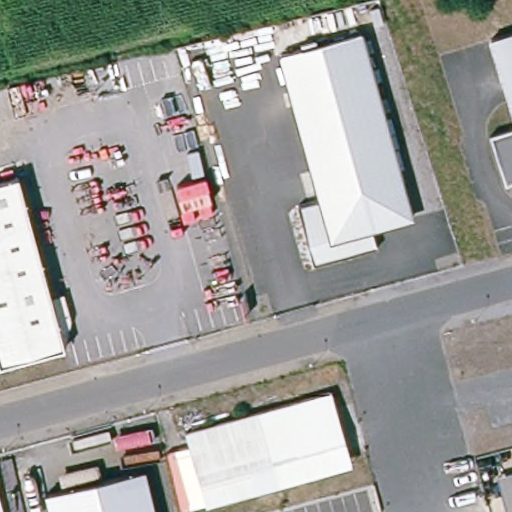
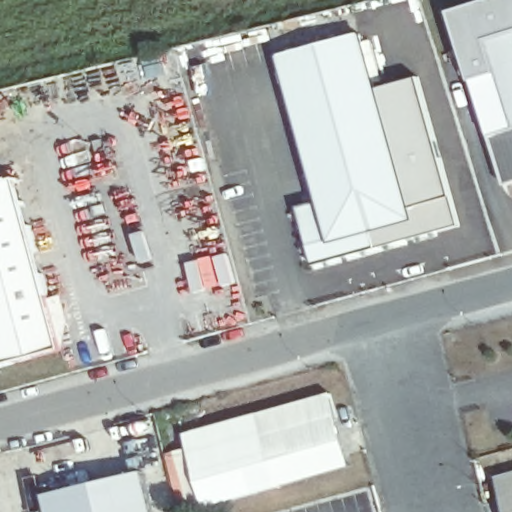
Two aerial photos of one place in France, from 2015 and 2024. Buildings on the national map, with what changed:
new [(488,41),(506,95),(472,79),(450,14),(492,0),(512,0),(512,34),(488,41)]
unchanged [(354,30),(405,215),(366,226),(371,245),(307,263),(292,204),(315,197),(275,52),(354,30)]
unchanged [(512,34),(512,114),(488,41),(512,34)]
new [(458,221),(371,245),(366,226),(405,215),(371,91),(417,78),(458,221)]
unchanged [(506,186),(490,138),(512,131),(512,185),(506,186)]
unchanged [(64,347),(0,364),(0,180),(16,176),(64,347)]
unchanged [(327,391),(327,393),(346,465),(273,484),(257,424),(254,411),(327,391)]
unchanged [(181,431),(254,411),(257,424),(273,484),(201,504),(187,455),(181,431)]
unchanged [(136,470),(140,486),(146,512),(43,512),(39,495),(136,470)]
unchanged [(512,472),(512,512),(501,512),(492,478),(512,472)]

